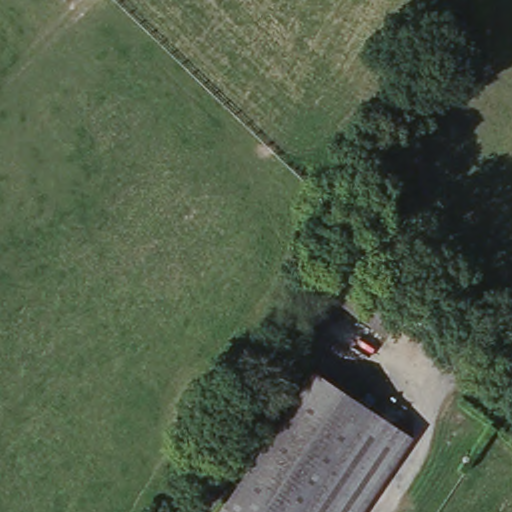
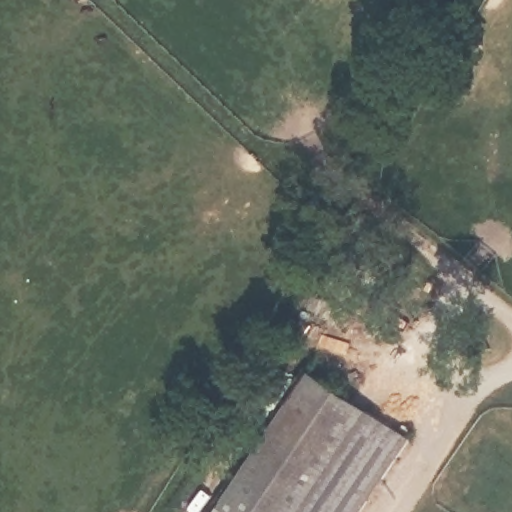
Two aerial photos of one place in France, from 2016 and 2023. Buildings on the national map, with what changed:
unchanged [(402,304),(379,335),(315,281),(338,252),(402,304)]
unchanged [(415,441),(365,512),(218,512),(315,373),(415,441)]

